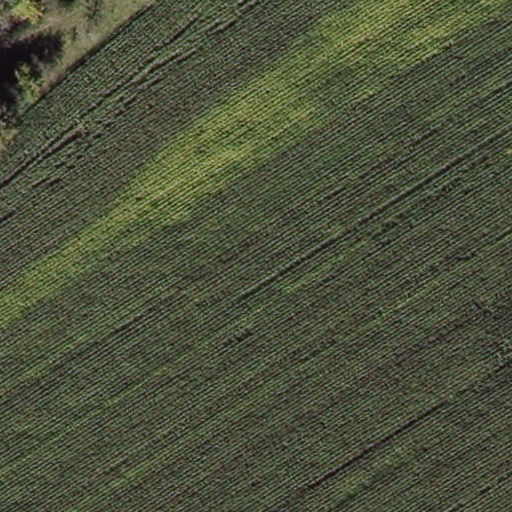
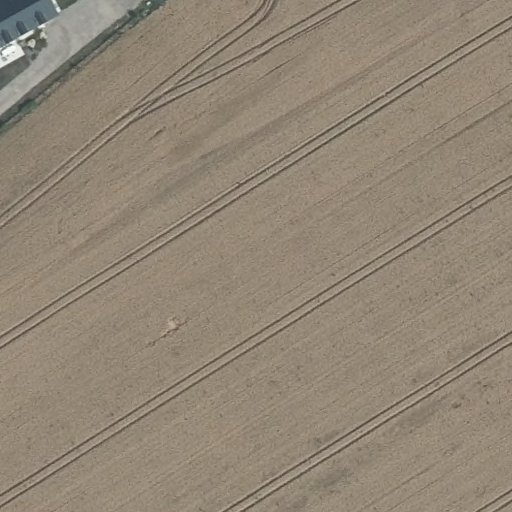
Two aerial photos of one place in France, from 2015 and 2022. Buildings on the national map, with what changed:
new [(56,5),(28,22),(26,20),(18,25),(20,27),(0,39),(0,0),(53,0),(56,5)]

